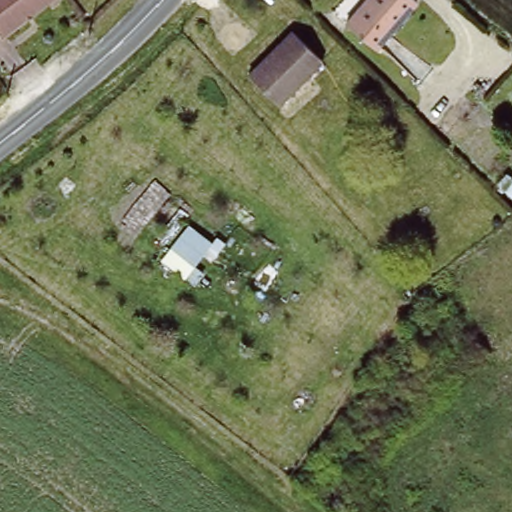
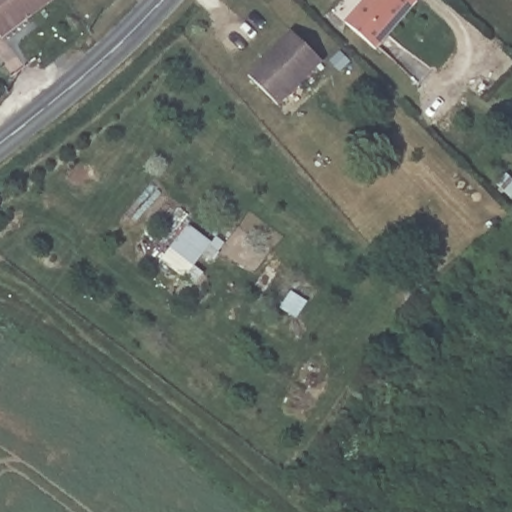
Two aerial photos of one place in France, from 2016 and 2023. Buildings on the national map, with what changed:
unchanged [(1,35),(0,34),(0,0),(50,0),(47,2),(1,35)]
unchanged [(415,0),(373,46),(343,18),(360,0),(415,0)]
unchanged [(289,33),(319,63),(278,105),(248,75),(289,33)]
unchanged [(213,240),(184,276),(161,257),(190,224),(213,240)]

